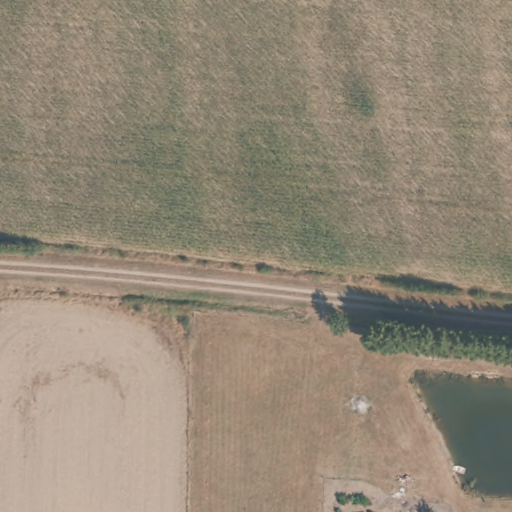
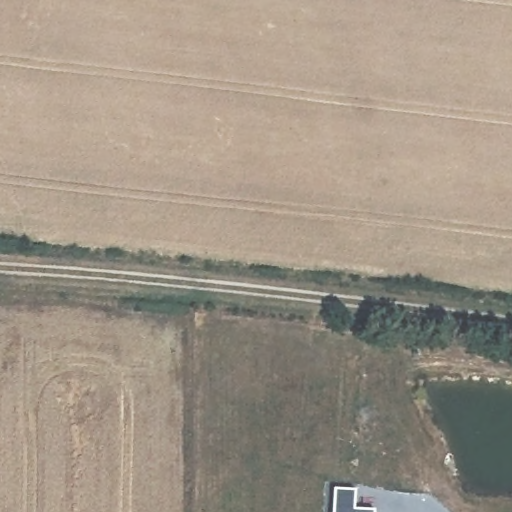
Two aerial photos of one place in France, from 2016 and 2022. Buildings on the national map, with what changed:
new [(355,491),(353,509),(375,511),(374,512),(332,512),(333,488),(355,491)]

